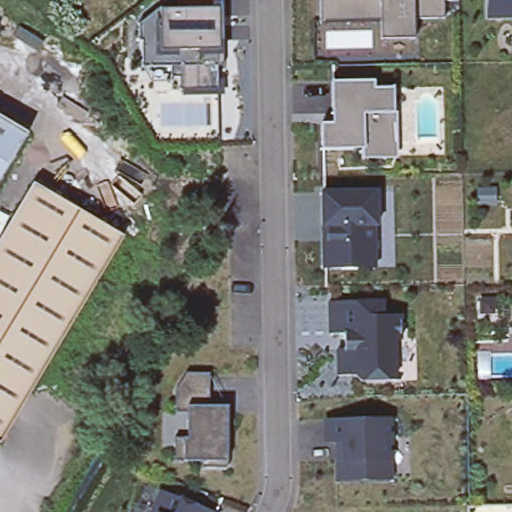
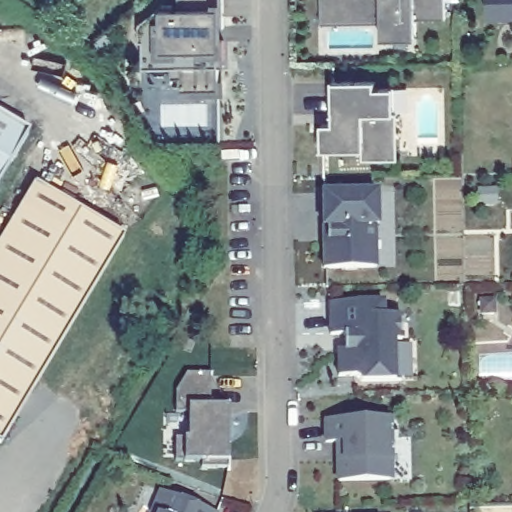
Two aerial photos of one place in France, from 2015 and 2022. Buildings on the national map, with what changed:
unchanged [(138,69),(138,42),(135,42),(135,25),(168,0),(220,0),(220,67),(215,68),(215,91),(177,92),(176,84),(147,84),(138,69)]
unchanged [(448,21),(418,22),(418,42),(385,42),(384,22),(324,24),(324,0),(448,0),(448,21)]
unchanged [(486,15),(486,0),(512,0),(512,14),(486,15)]
unchanged [(378,84),(378,91),(397,91),(398,158),(366,159),(366,147),(357,147),(357,152),(325,152),(325,127),(342,127),(342,117),(336,117),(335,85),(378,84)]
unchanged [(0,114),(27,131),(0,177),(0,114)]
unchanged [(130,232),(11,433),(0,427),(0,237),(35,177),(130,232)]
unchanged [(325,195),(379,194),(380,227),(377,227),(377,269),(326,270),(325,246),(325,228),(325,195)]
unchanged [(385,302),(385,317),(403,317),(403,342),(396,342),(397,382),(363,383),(357,377),(340,377),(340,351),(347,351),(346,336),(332,336),(332,303),(385,302)]
unchanged [(219,407),(230,407),(230,418),(230,469),(203,468),(203,462),(177,462),(177,438),(190,439),(190,413),(177,413),(177,392),(188,373),(212,374),(212,407),(219,407)]
unchanged [(327,442),(327,422),(392,421),(392,481),(340,482),(340,467),(339,442),(327,442)]
unchanged [(153,512),(162,490),(216,512),(153,512)]

